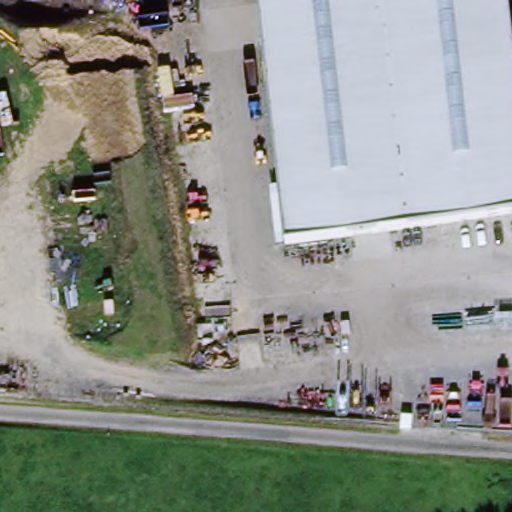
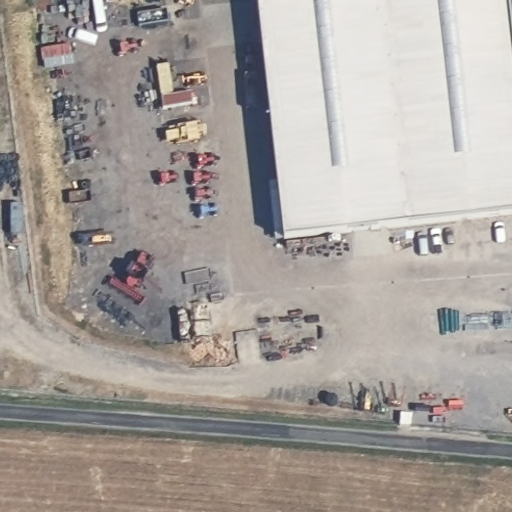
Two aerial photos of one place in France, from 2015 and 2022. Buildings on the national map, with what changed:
unchanged [(282,241),(255,0),(507,0),(512,40),(512,217),(282,241)]

